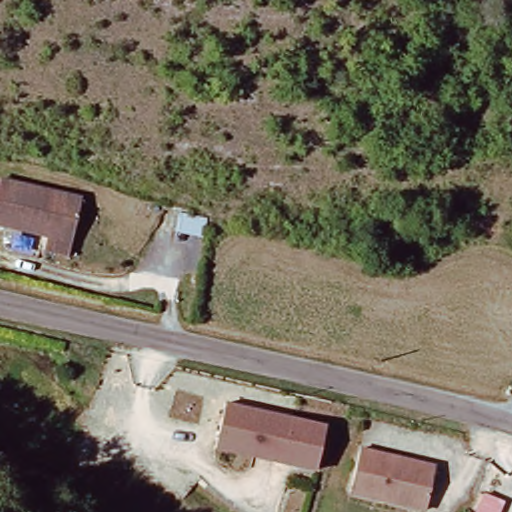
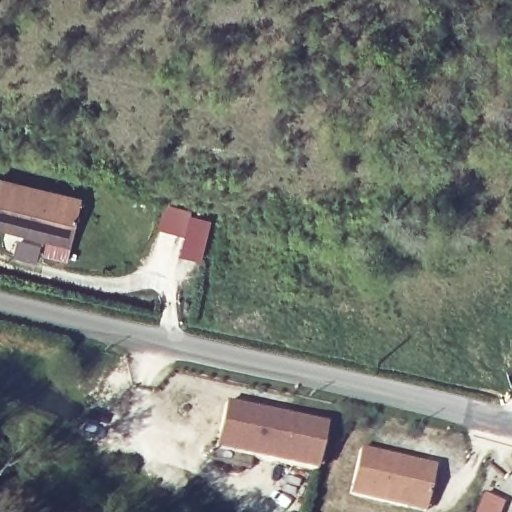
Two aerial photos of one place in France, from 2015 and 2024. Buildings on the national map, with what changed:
unchanged [(78,205),(65,262),(41,257),(45,240),(0,229),(0,185),(78,205)]
new [(202,259),(180,253),(184,235),(157,229),(164,205),(212,218),(202,259)]
unchanged [(324,424),(317,474),(214,453),(224,403),(324,424)]
unchanged [(409,507),(351,494),(361,450),(437,468),(430,499),(427,511),(409,507)]

